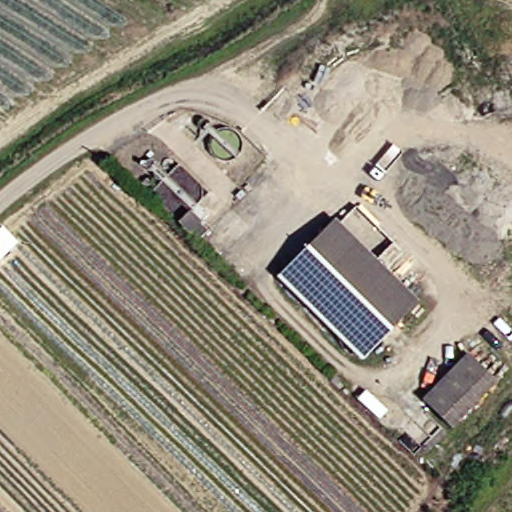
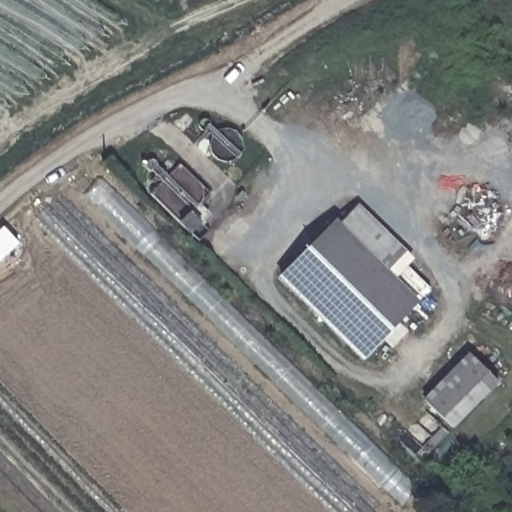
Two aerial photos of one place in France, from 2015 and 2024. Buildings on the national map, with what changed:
unchanged [(159,163),(153,170),(146,163),(153,157),(159,163)]
unchanged [(206,246),(152,196),(186,161),(218,193),(204,207),(214,218),(207,225),(217,235),(206,246)]
unchanged [(169,172),(161,179),(156,173),(164,166),(169,172)]
new [(88,194),(101,179),(417,486),(402,506),(88,194)]
unchanged [(279,279),(338,218),(420,298),(364,358),(279,279)]
unchanged [(499,382),(453,429),(425,401),(470,355),(499,382)]

